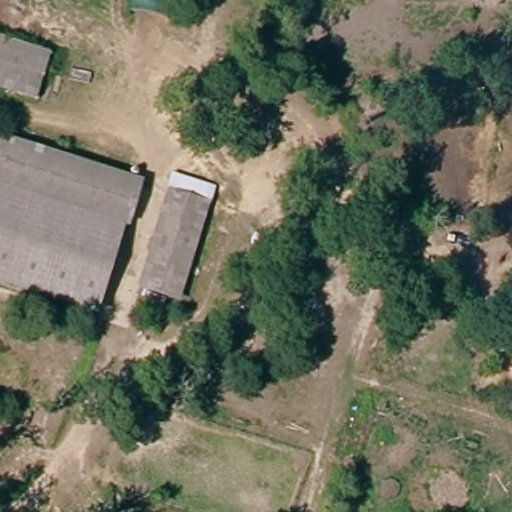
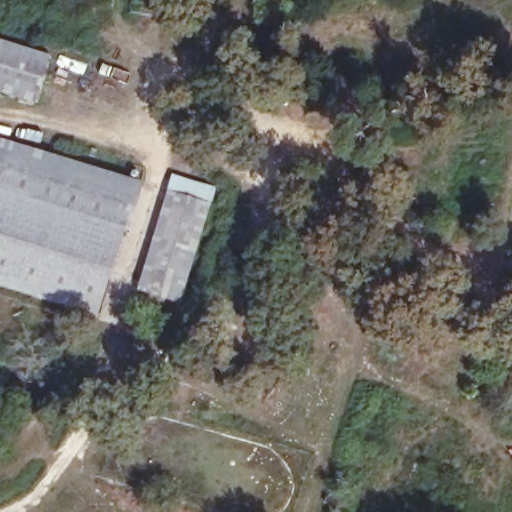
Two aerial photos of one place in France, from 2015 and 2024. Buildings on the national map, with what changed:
unchanged [(35,103),(0,91),(0,41),(51,59),(35,103)]
unchanged [(135,185),(121,234),(0,192),(0,139),(135,185)]
unchanged [(137,288),(177,173),(216,189),(175,303),(137,288)]
unchanged [(95,319),(0,289),(0,192),(121,234),(95,319)]

